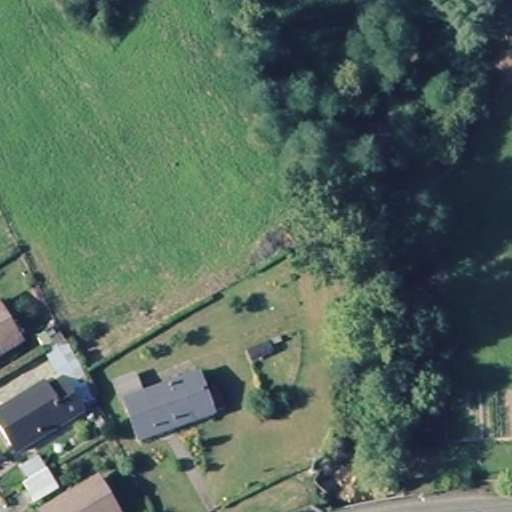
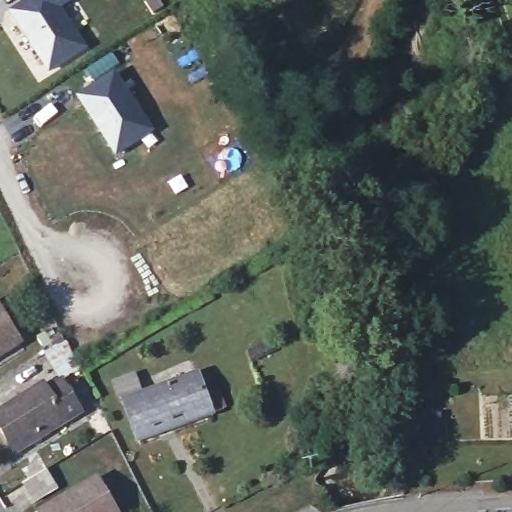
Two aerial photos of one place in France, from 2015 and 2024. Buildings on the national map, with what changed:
new [(16,8),(28,0),(69,0),(60,6),(86,46),(50,69),(15,14),(16,8)]
new [(95,84),(86,69),(112,51),(120,65),(111,70),(113,75),(118,72),(155,132),(152,134),(158,143),(148,150),(141,141),(116,157),(77,97),(95,84)]
unchanged [(14,337),(0,345),(0,315),(14,337)]
unchanged [(198,382),(210,418),(135,444),(122,408),(198,382)]
unchanged [(44,392),(47,396),(62,388),(82,419),(16,460),(0,434),(0,419),(44,392)]
unchanged [(49,466),(60,483),(37,498),(26,481),(49,466)]
unchanged [(114,512),(46,512),(94,482),(114,512)]

